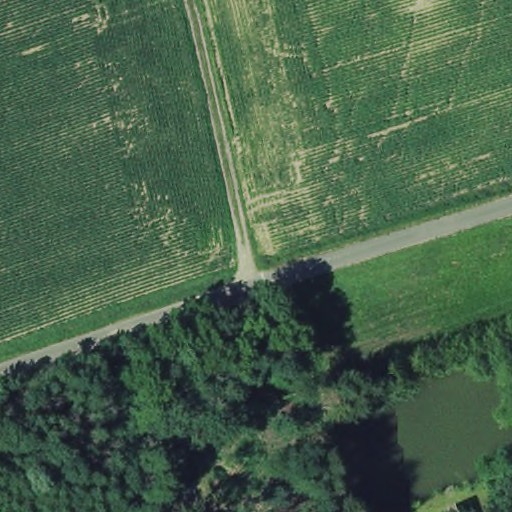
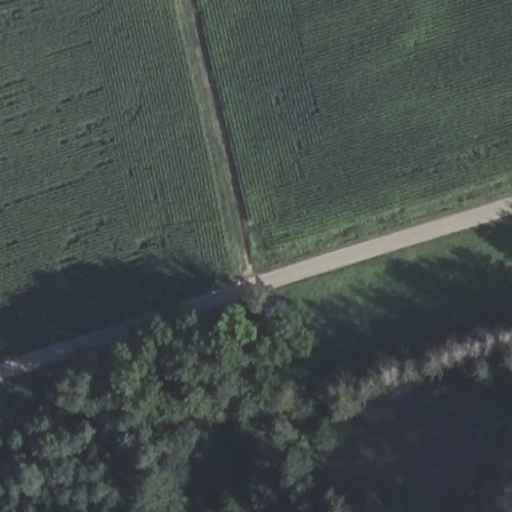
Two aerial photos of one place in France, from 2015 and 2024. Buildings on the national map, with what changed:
unchanged [(478,512),(454,512),(475,503),(478,512)]

